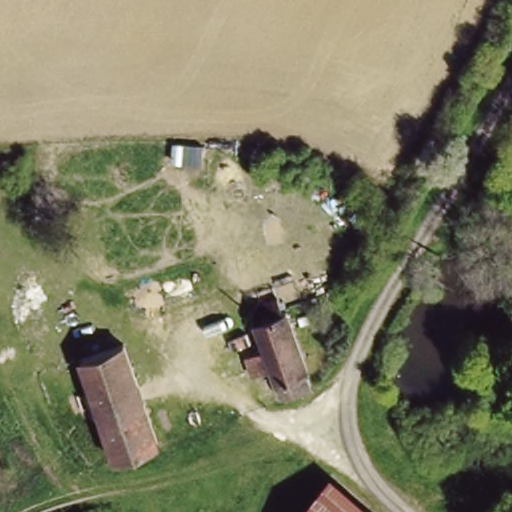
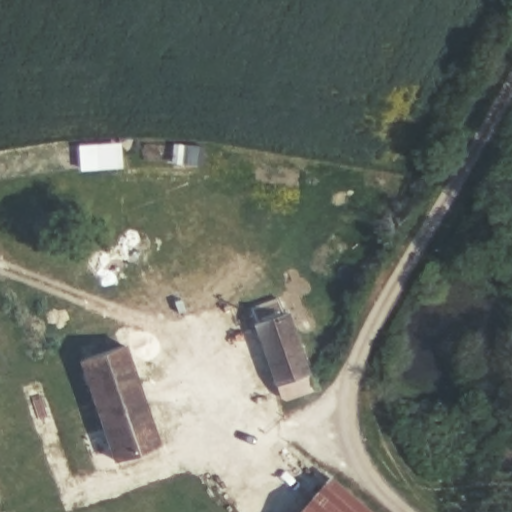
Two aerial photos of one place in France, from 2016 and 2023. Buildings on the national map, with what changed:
unchanged [(315,382),(290,396),(239,300),(265,287),(315,382)]
unchanged [(74,343),(115,328),(160,448),(153,450),(156,459),(121,472),(116,460),(77,353),(74,343)]
unchanged [(294,512),(330,470),(380,512),(294,512)]

